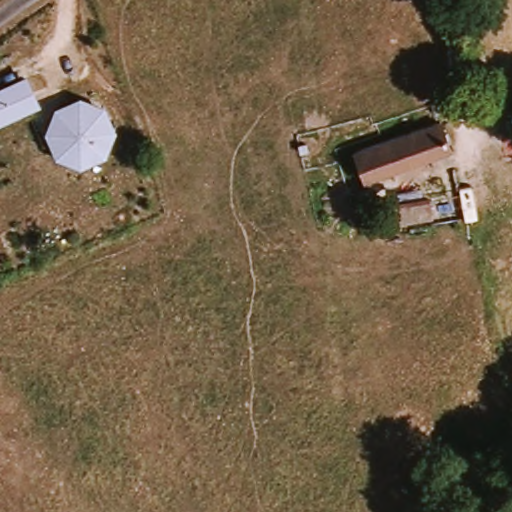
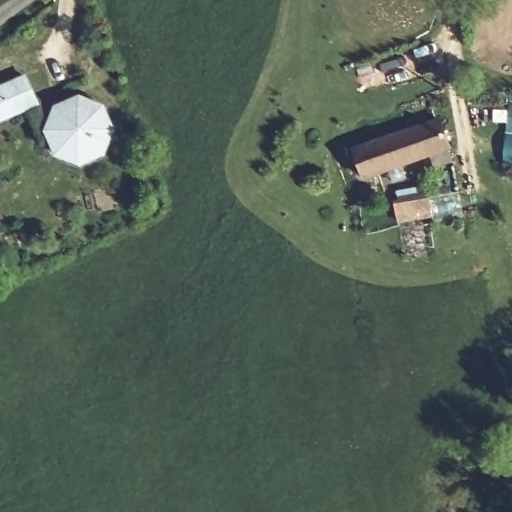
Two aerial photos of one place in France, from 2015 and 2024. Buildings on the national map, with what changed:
unchanged [(26,72),(41,104),(0,123),(0,83),(26,72)]
unchanged [(81,94),(107,106),(118,130),(107,155),(81,165),(57,154),(46,129),(56,104),(81,94)]
unchanged [(360,150),(445,120),(454,148),(371,177),(360,150)]
unchanged [(462,181),(467,202),(436,210),(437,216),(407,224),(403,205),(433,197),(431,191),(462,181)]

